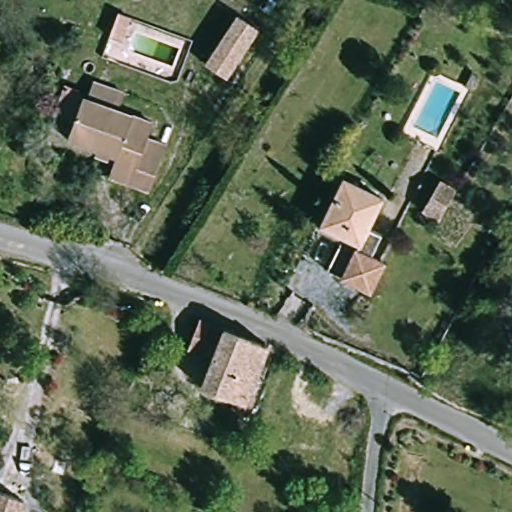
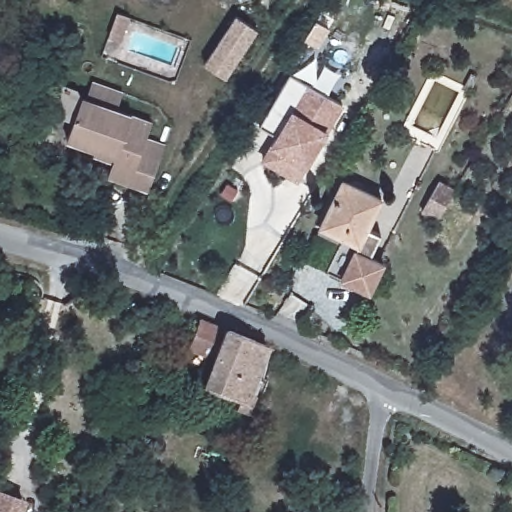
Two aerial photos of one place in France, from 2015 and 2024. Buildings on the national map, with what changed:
unchanged [(263,0),(269,0),(276,5),(268,17),(257,10),(263,0)]
unchanged [(107,39),(117,13),(130,18),(121,44),(107,39)]
unchanged [(204,66),(237,19),(258,33),(225,80),(204,66)]
new [(345,105),(330,130),(307,166),(298,182),(261,161),(270,145),(277,134),(261,125),(289,74),(345,105)]
unchanged [(145,140),(168,149),(151,194),(112,179),(120,156),(68,137),(82,99),(89,82),(108,89),(102,106),(151,124),(145,140)]
unchanged [(342,232),(326,222),(352,176),(387,196),(369,227),(383,235),(370,259),(384,267),(367,296),(340,281),(320,270),(342,232)]
unchanged [(455,191),(439,219),(426,211),(441,184),(455,191)]
unchanged [(252,376),(262,380),(247,416),(227,408),(230,400),(196,386),(208,359),(182,348),(194,320),(219,330),(263,348),(252,376)]
unchanged [(26,490),(17,512),(0,512),(0,480),(26,490)]

